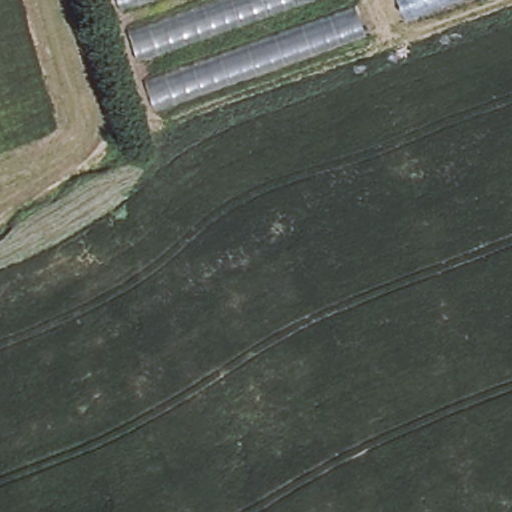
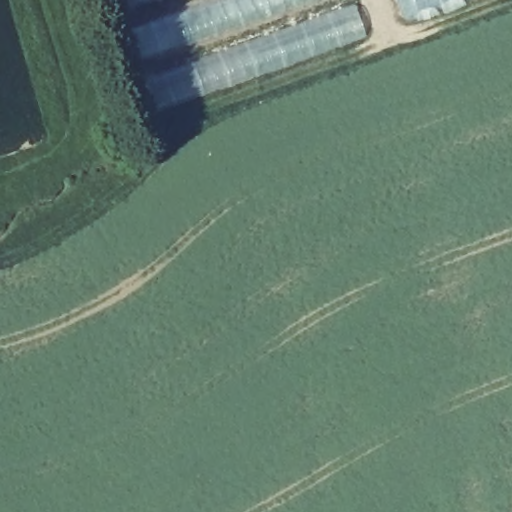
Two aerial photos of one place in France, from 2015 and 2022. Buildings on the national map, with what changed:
unchanged [(157,112),(121,0),(352,0),(363,37),(157,112)]
unchanged [(451,0),(405,17),(398,0),(451,0)]

